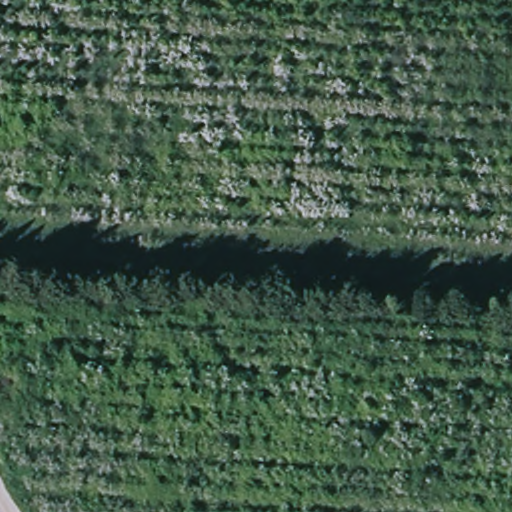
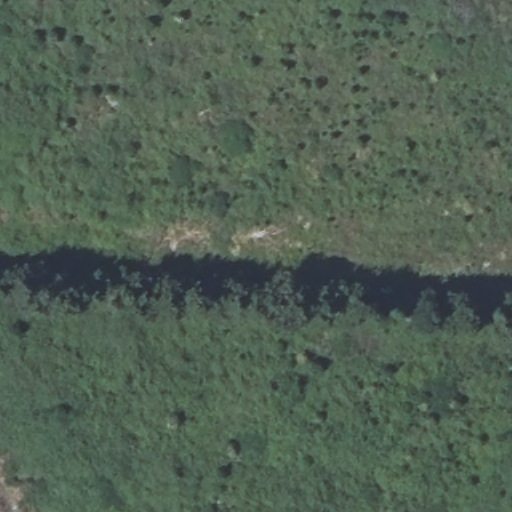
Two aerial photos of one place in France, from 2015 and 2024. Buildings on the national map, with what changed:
[]

